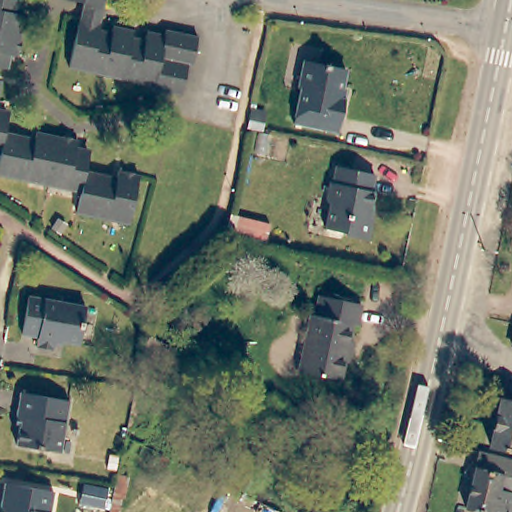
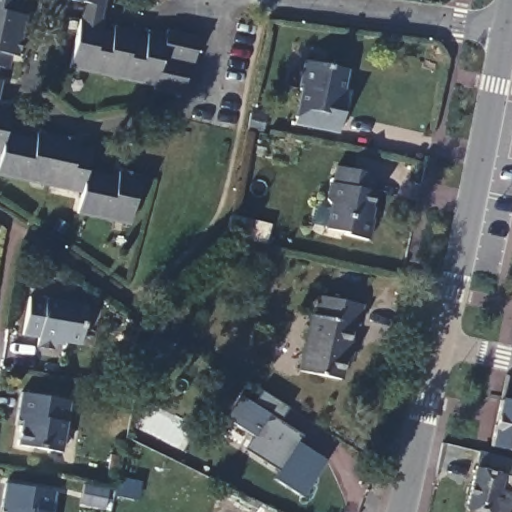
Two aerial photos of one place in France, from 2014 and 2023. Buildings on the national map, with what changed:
unchanged [(16,9),(27,12),(15,57),(5,55),(4,66),(0,65),(0,0),(18,0),(16,9)]
unchanged [(93,0),(96,0),(96,1),(93,0)]
unchanged [(182,65),(174,96),(148,89),(149,86),(64,65),(75,15),(96,20),(93,31),(106,34),(109,23),(130,28),(127,39),(142,43),(145,32),(164,37),(165,30),(194,37),(188,66),(182,65)]
unchanged [(347,73),(341,104),(346,105),(339,138),(292,128),(299,96),(297,91),(302,64),(347,73)]
unchanged [(0,87),(0,82),(1,82),(0,87)]
unchanged [(0,112),(8,113),(4,134),(0,154),(0,153),(0,112)]
unchanged [(39,132),(76,140),(75,150),(88,153),(85,171),(117,177),(119,172),(139,176),(129,224),(75,213),(79,190),(0,174),(0,156),(0,154),(4,134),(37,137),(39,132)]
unchanged [(330,181),(332,181),(335,166),(375,173),(373,186),(376,186),(371,216),(375,217),(371,241),(345,236),(345,233),(324,229),(329,205),(326,195),(330,181)]
unchanged [(356,326),(344,382),(301,373),(314,316),(320,318),(324,298),(365,307),(361,327),(356,326)]
unchanged [(35,352),(37,340),(22,337),(26,301),(86,311),(80,347),(55,343),(53,354),(35,352)]
unchanged [(507,349),(512,326),(512,350),(507,349)]
unchanged [(137,349),(142,339),(164,351),(159,360),(137,349)]
new [(302,498),(272,480),(279,472),(245,451),(255,438),(225,420),(241,398),(254,406),(263,392),(288,408),(281,421),(303,435),(298,442),(325,461),(302,498)]
unchanged [(66,401),(58,454),(11,447),(16,414),(12,414),(15,394),(66,401)]
unchanged [(512,403),(512,454),(491,451),(500,401),(512,403)]
unchanged [(475,457),(504,463),(512,464),(512,509),(511,512),(466,512),(472,471),(475,457)]
unchanged [(50,512),(4,512),(5,507),(0,506),(0,501),(1,486),(52,493),(50,512)]
demolished [(170,500),(164,512),(131,512),(142,487),(170,500)]

